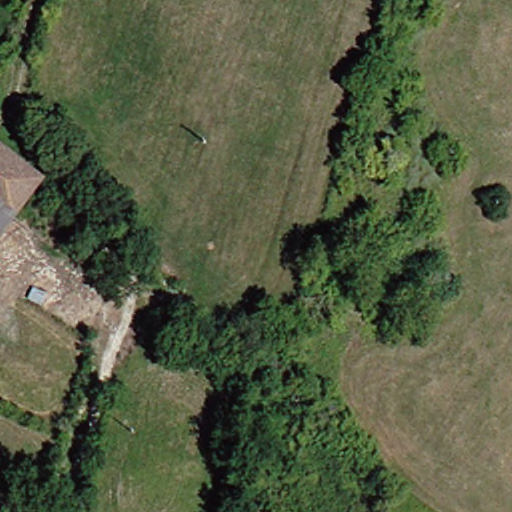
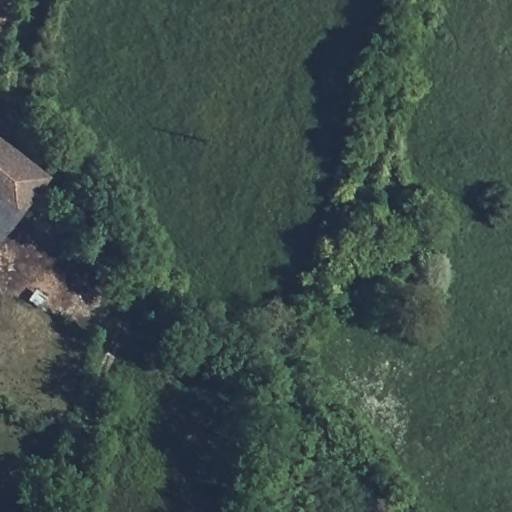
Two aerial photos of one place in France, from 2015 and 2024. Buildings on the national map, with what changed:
unchanged [(0,191),(0,154),(40,182),(23,207),(0,191)]
unchanged [(0,214),(0,191),(23,207),(14,223),(0,214)]
unchanged [(0,242),(0,214),(14,223),(0,242)]

